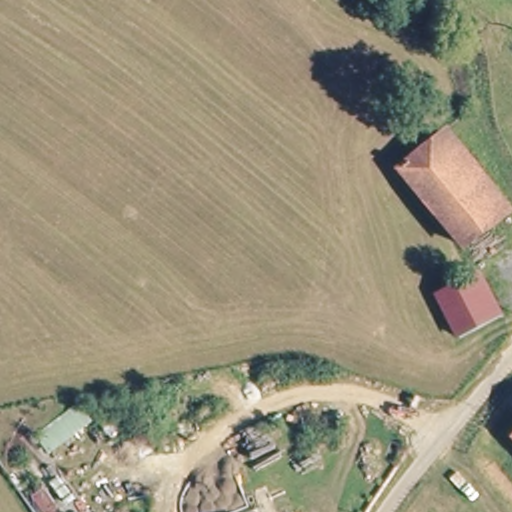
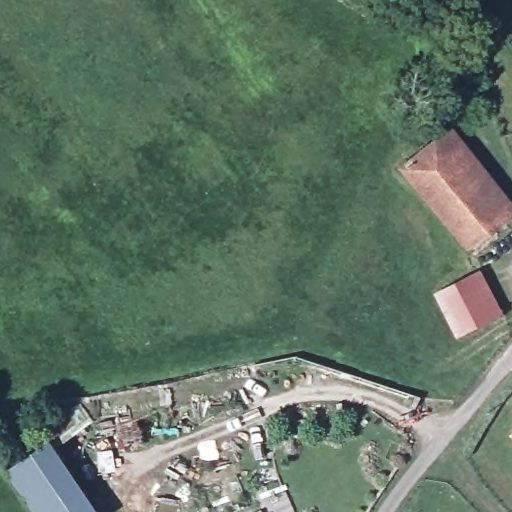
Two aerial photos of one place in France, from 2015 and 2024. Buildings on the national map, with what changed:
unchanged [(410,177),(461,133),(510,197),(460,238),(410,177)]
unchanged [(481,277),(500,314),(476,327),(459,335),(442,298),(447,295),(481,277)]
new [(84,396),(95,412),(50,443),(50,442),(39,427),(84,396)]
new [(99,512),(36,512),(9,471),(50,443),(99,512)]

